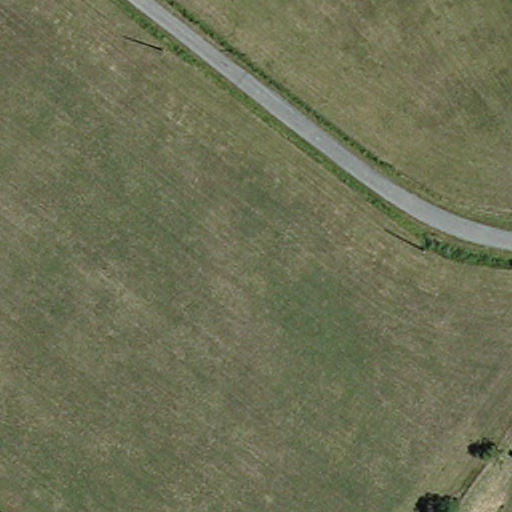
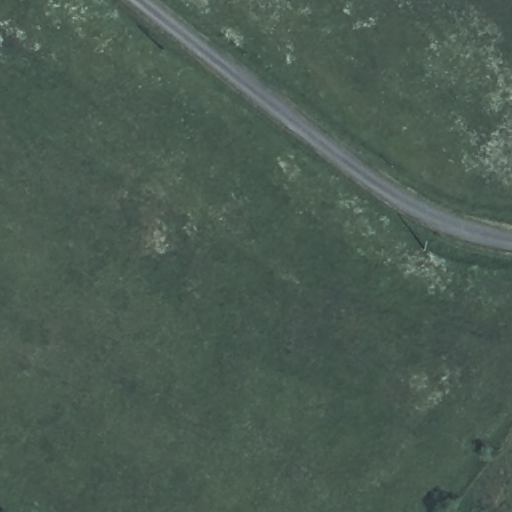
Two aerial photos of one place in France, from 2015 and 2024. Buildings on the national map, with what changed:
[]

